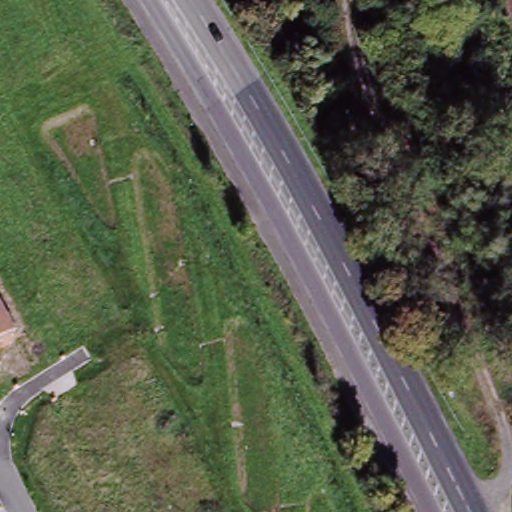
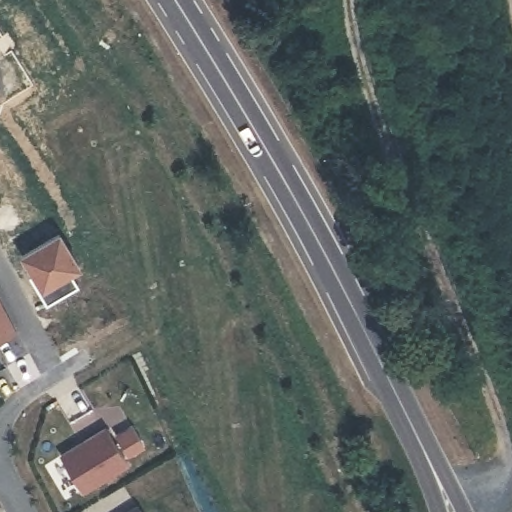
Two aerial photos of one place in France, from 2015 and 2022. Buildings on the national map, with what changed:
new [(35,292),(39,289),(20,257),(62,231),(83,263),(67,274),(76,287),(44,307),(35,292)]
new [(31,275),(39,289),(35,292),(26,279),(31,275)]
unchanged [(0,340),(0,304),(15,333),(0,340)]
new [(129,426),(141,447),(126,456),(114,436),(129,426)]
new [(103,429),(125,465),(81,493),(58,457),(103,429)]
new [(135,507),(138,512),(126,512),(135,507)]

